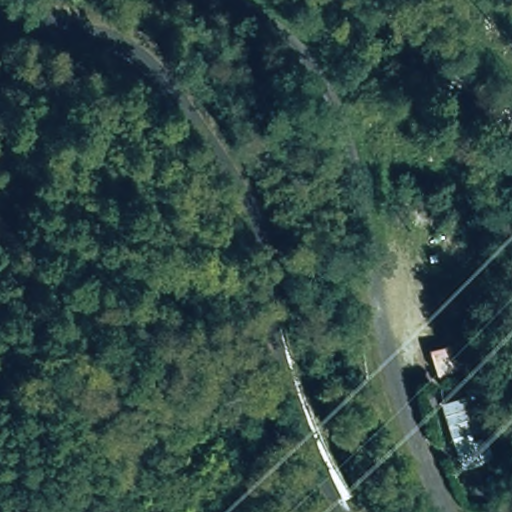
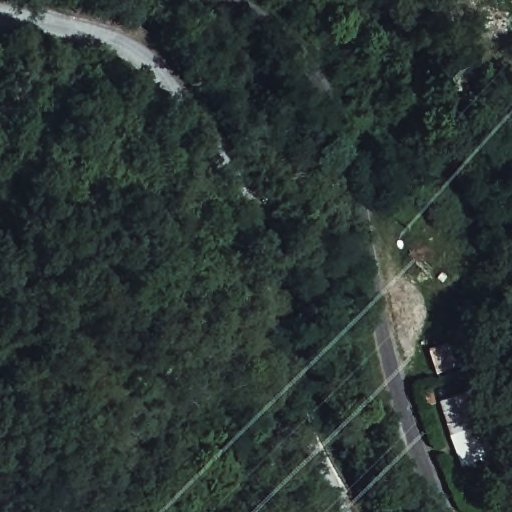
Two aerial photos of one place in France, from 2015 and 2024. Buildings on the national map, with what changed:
unchanged [(429,352),(454,344),(460,370),(437,376),(429,352)]
unchanged [(466,397),(482,463),(458,470),(440,403),(466,397)]

